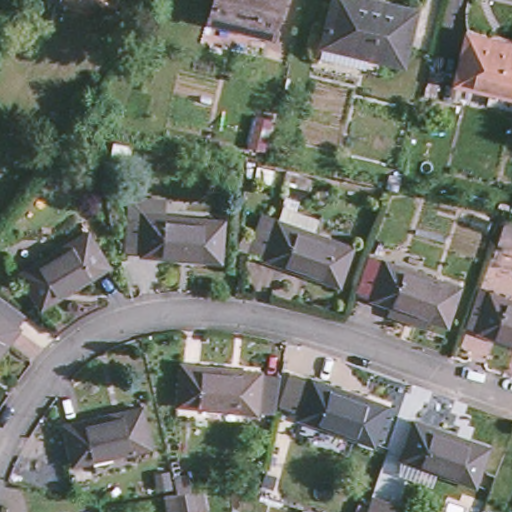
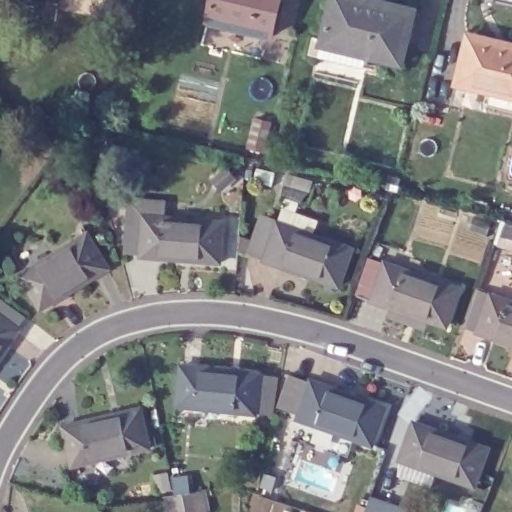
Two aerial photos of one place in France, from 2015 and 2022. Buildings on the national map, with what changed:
unchanged [(270,29),(211,16),(214,0),(276,0),(270,29)]
unchanged [(414,5),(402,58),(321,37),(330,0),(394,0),(414,5)]
unchanged [(496,41),(510,43),(512,33),(512,100),(482,93),(485,81),(453,73),(465,25),(498,33),(496,41)]
unchanged [(343,247),(331,282),(257,257),(271,220),(343,247)]
unchanged [(216,227),(214,261),(140,256),(142,222),(216,227)]
unchanged [(505,239),(508,228),(512,229),(512,258),(501,256),(505,239)]
unchanged [(108,263),(48,302),(28,271),(88,232),(108,263)]
unchanged [(461,284),(450,319),(381,296),(363,289),(371,266),(375,256),(392,264),(394,261),(461,284)]
unchanged [(472,322),(483,289),(495,294),(497,289),(512,294),(512,336),(483,326),(472,322)]
unchanged [(18,326),(0,352),(0,314),(18,326)]
unchanged [(262,374),(258,412),(182,403),(186,365),(262,374)]
unchanged [(387,400),(375,438),(302,413),(315,375),(387,400)]
unchanged [(151,440),(69,458),(62,420),(143,401),(151,440)]
unchanged [(491,445),(479,481),(406,457),(419,420),(491,445)]
unchanged [(370,512),(372,506),(391,512),(370,512)]

